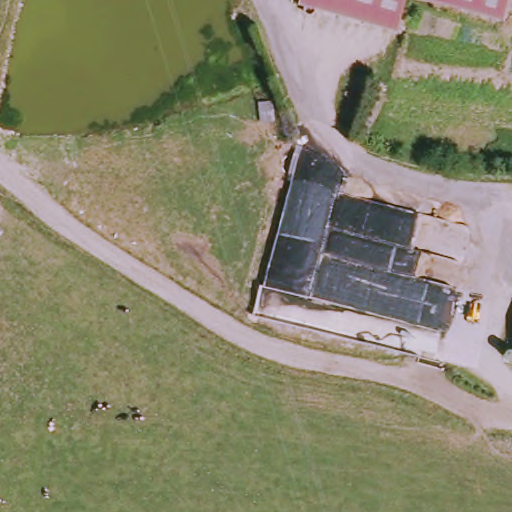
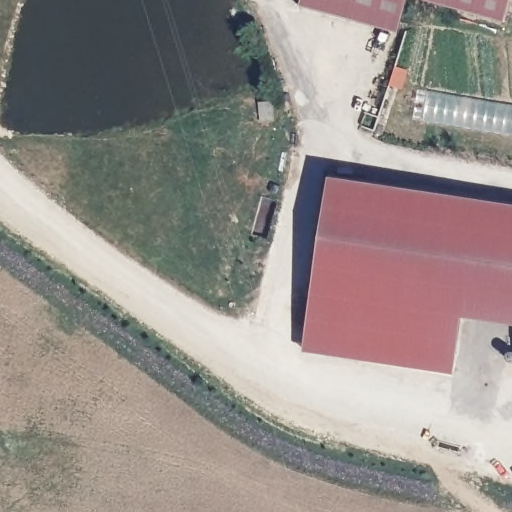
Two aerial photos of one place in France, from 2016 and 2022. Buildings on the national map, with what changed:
unchanged [(318,0),(393,0),(390,16),(318,0)]
unchanged [(449,0),(459,0),(458,2),(449,0)]
new [(305,349),(332,175),(512,202),(512,322),(462,315),(453,372),(305,349)]

